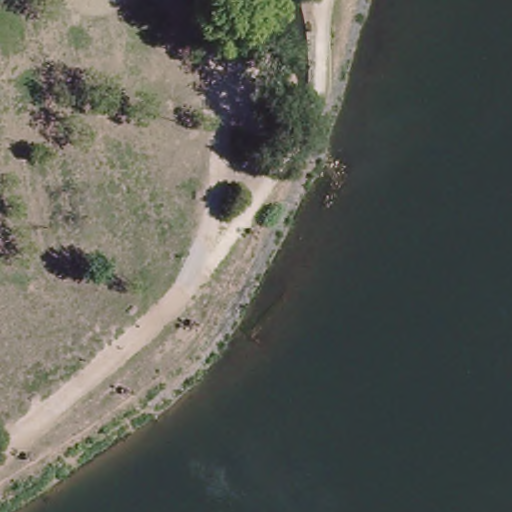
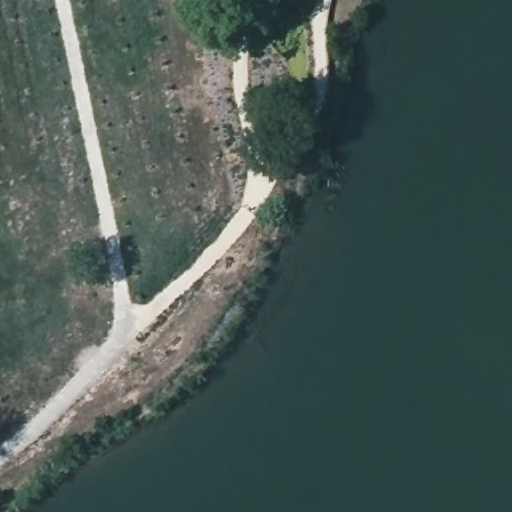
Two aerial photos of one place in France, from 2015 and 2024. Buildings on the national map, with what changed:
[]

